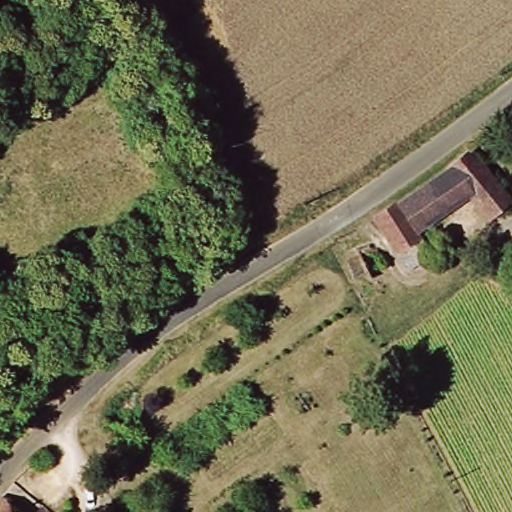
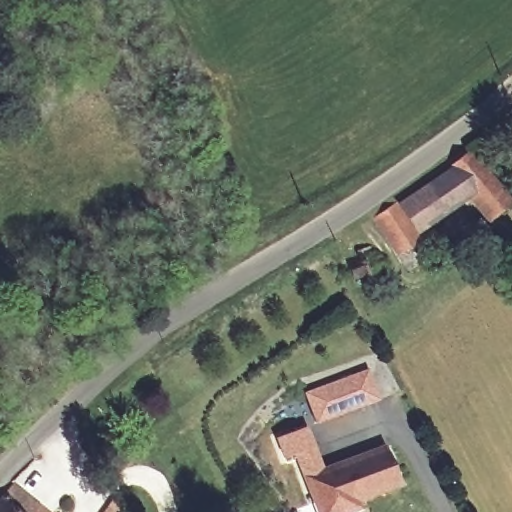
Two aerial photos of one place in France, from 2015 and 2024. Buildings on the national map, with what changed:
unchanged [(472,199),(424,236),(434,257),(404,272),(378,216),(473,150),(512,196),(512,218),(499,230),(472,199)]
new [(349,376),(366,371),(376,401),(359,407),(329,416),(313,422),(302,393),(319,387),(349,376)]
new [(323,469),(331,466),(386,448),(400,488),(358,503),(360,511),(356,512),(315,512),(296,454),(284,458),(278,437),(308,427),(323,469)]
unchanged [(43,512),(0,512),(0,505),(17,487),(43,512)]

